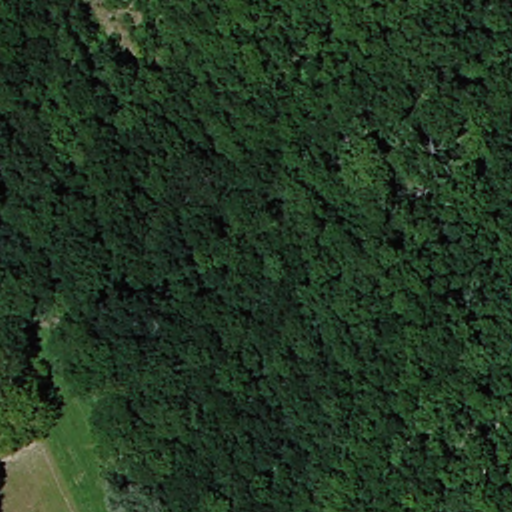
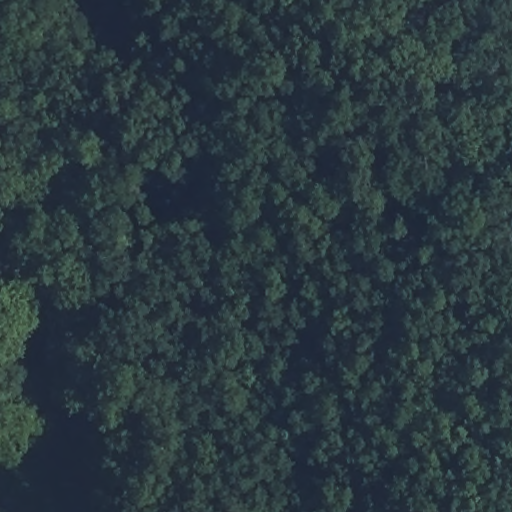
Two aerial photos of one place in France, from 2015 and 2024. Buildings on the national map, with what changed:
[]

